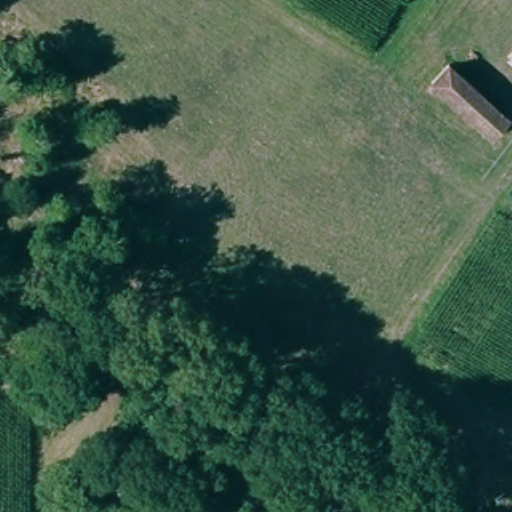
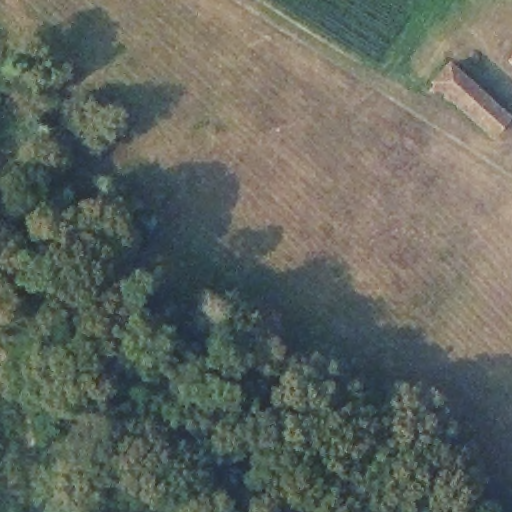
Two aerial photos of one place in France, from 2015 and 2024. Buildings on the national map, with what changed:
unchanged [(512,51),(512,56),(510,54),(512,51)]
unchanged [(504,119),(489,134),(430,79),(444,64),(504,119)]

